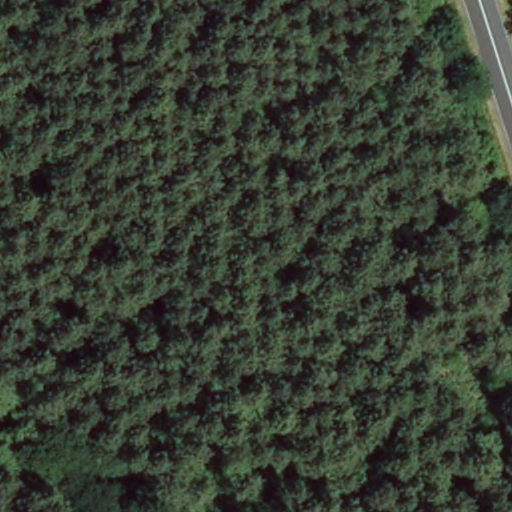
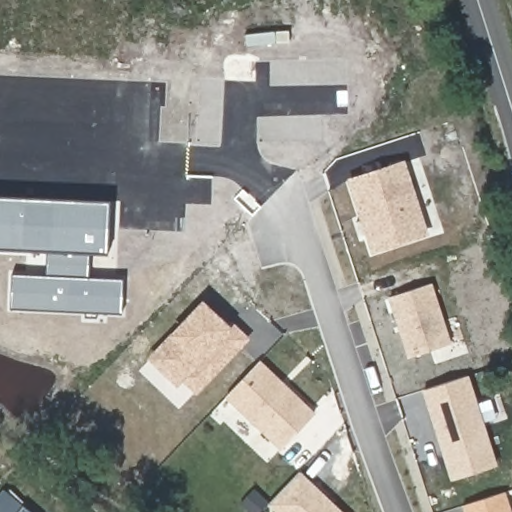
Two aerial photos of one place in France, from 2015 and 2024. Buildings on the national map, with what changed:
new [(428,231),(377,251),(350,182),(402,162),(428,231)]
new [(46,275),(47,251),(0,249),(0,197),(110,202),(108,253),(89,252),(89,278),(123,280),(122,313),(11,308),(12,274),(46,275)]
new [(451,345),(411,361),(388,302),(428,286),(451,345)]
new [(170,334),(202,300),(231,326),(233,323),(250,340),(196,396),(182,382),(177,387),(147,360),(170,334)]
new [(315,408),(284,445),(227,396),(258,359),(315,408)]
new [(451,481),(438,446),(424,411),(418,395),(460,379),(493,465),(451,481)]
new [(277,512),(272,507),(300,475),(330,501),(328,503),(332,508),(335,505),(343,512),(277,512)]
new [(465,512),(463,507),(503,491),(511,512),(465,512)]
new [(18,512),(9,512),(12,507),(18,512)]
new [(326,512),(329,510),(332,512),(326,512)]

